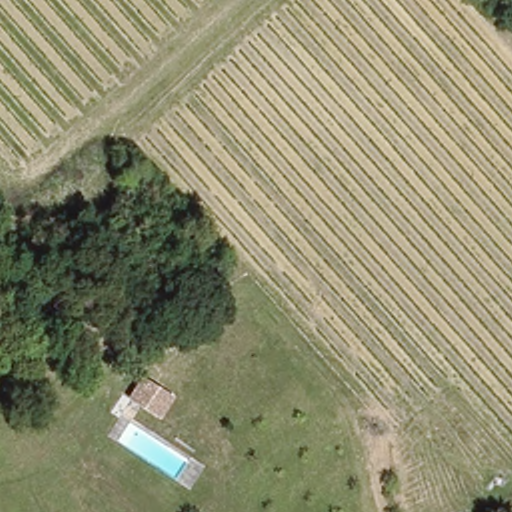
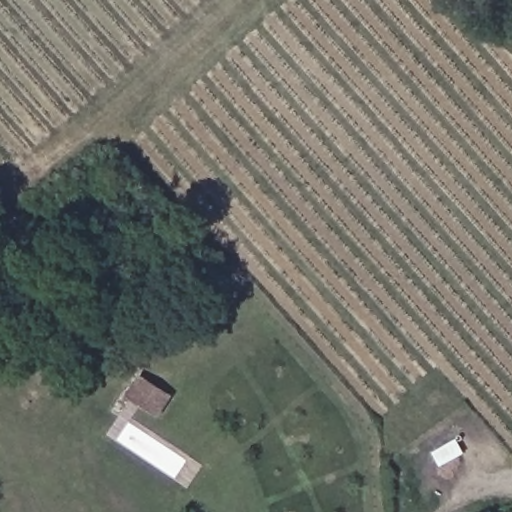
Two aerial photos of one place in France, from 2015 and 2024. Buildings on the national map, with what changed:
unchanged [(145,410),(150,402),(160,388),(185,405),(176,419),(170,427),(145,410)]

